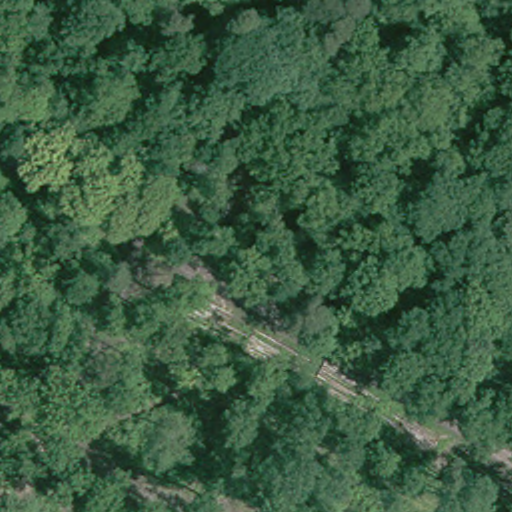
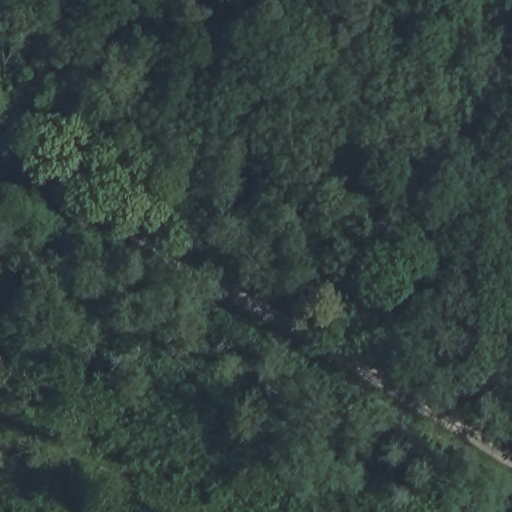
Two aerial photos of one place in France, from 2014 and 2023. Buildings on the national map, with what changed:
unchanged [(6,80),(0,90),(0,77),(6,80)]

